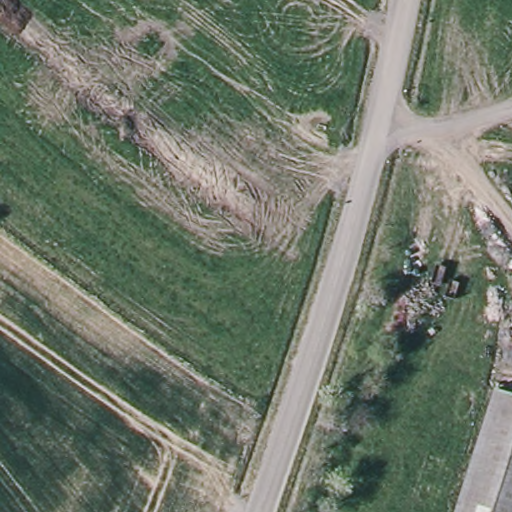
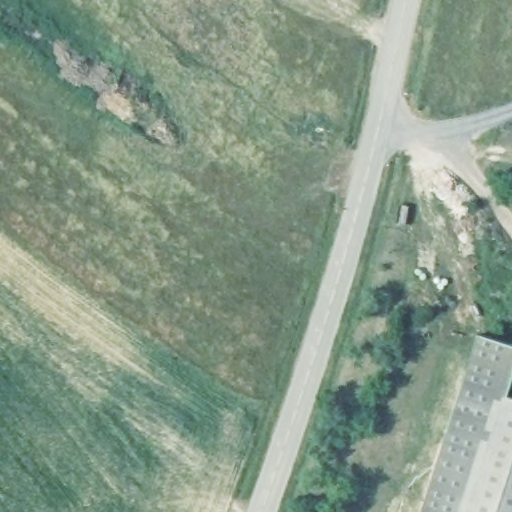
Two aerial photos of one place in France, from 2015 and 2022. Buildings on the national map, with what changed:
new [(505,395),(495,392),(456,512),(420,512),(477,334),(512,346),(512,372),(505,395)]
unchanged [(512,397),(512,512),(456,512),(495,392),(512,397)]

